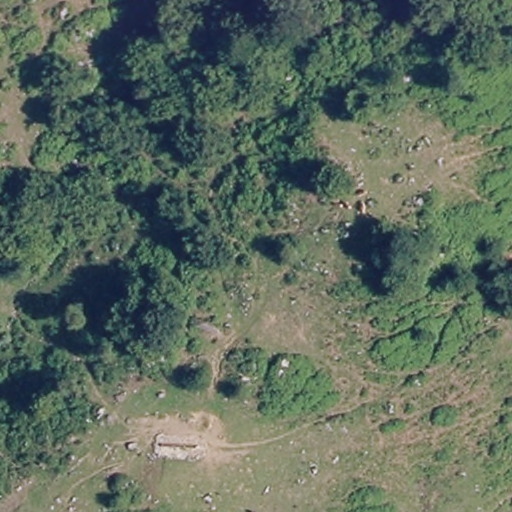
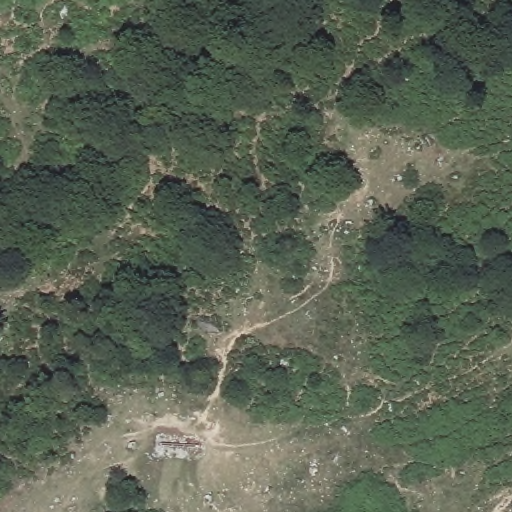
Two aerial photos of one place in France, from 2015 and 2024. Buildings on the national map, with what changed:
[]

